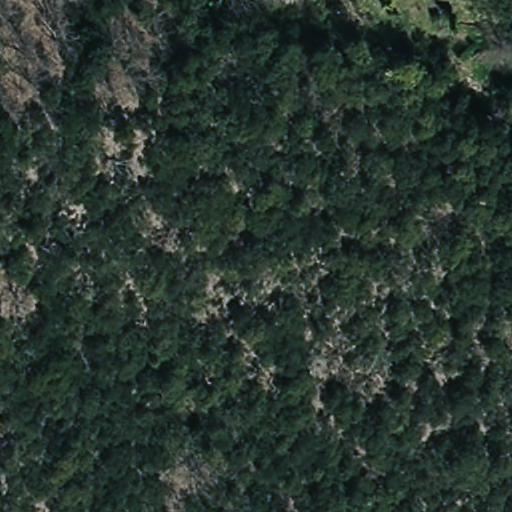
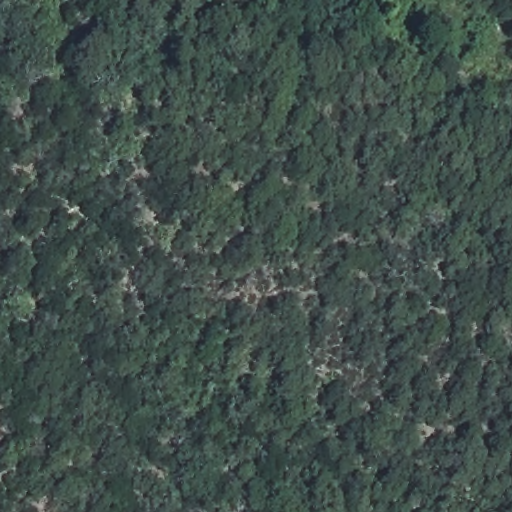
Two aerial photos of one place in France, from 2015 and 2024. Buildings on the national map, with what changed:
[]

